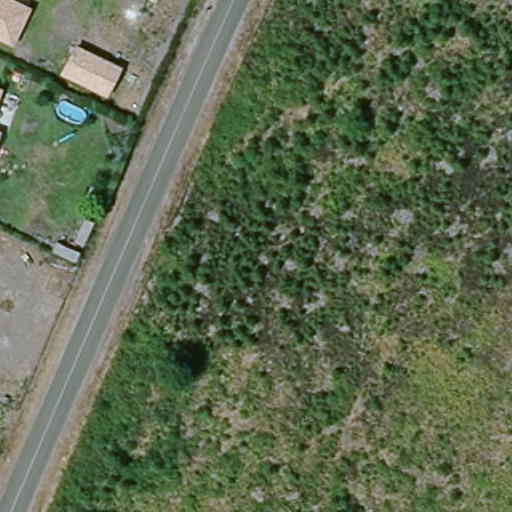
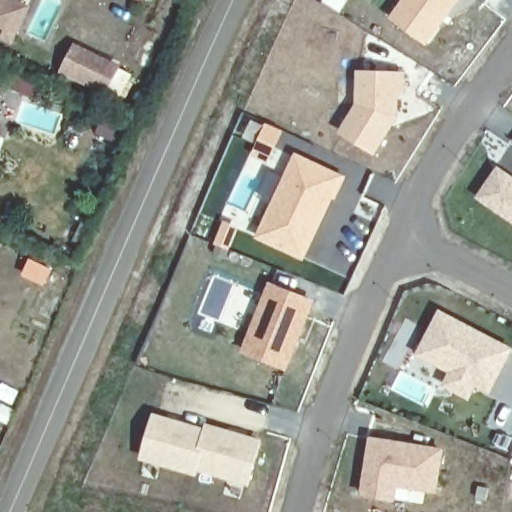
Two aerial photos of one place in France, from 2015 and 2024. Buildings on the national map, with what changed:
unchanged [(31,3),(13,45),(0,39),(0,0),(26,0),(31,3)]
new [(389,18),(402,0),(459,0),(426,46),(389,18)]
unchanged [(121,64),(106,99),(59,79),(75,41),(121,64)]
new [(373,154),(338,131),(355,104),(356,71),(405,72),(404,92),(398,92),(397,116),(373,154)]
unchanged [(3,90),(0,98),(0,89),(3,90)]
unchanged [(2,130),(0,135),(0,129),(2,130)]
new [(256,237),(295,152),(344,176),(335,199),(331,197),(303,260),(256,237)]
new [(497,166),(512,176),(512,223),(476,199),(497,166)]
new [(268,281),(315,300),(286,372),(238,353),(268,281)]
new [(512,347),(512,351),(487,396),(475,389),(469,402),(439,385),(445,372),(412,354),(438,308),(512,347)]
new [(138,460),(152,413),(204,428),(206,423),(262,440),(249,486),(196,471),(195,477),(138,460)]
new [(396,487),(394,502),(359,496),(369,436),(443,449),(436,493),(396,487)]

